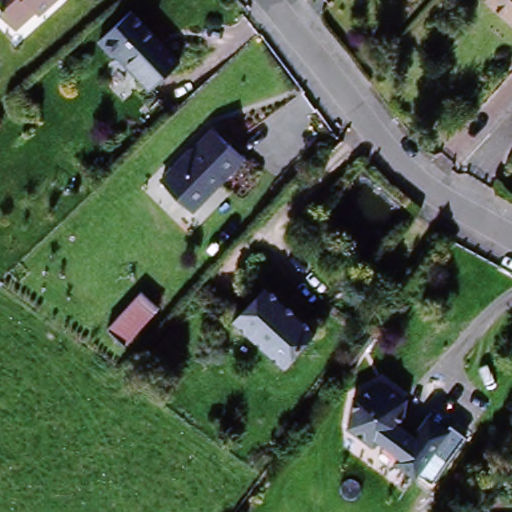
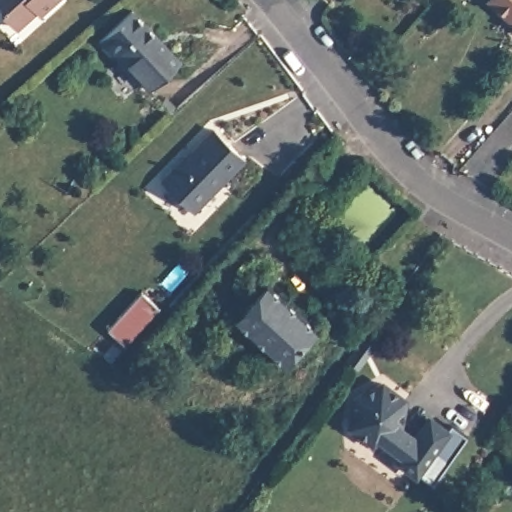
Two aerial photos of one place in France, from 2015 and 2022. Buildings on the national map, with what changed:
unchanged [(61,0),(48,12),(44,10),(23,29),(8,13),(12,8),(5,0),(61,0)]
unchanged [(494,0),(512,0),(512,17),(494,0)]
unchanged [(149,83),(131,60),(124,65),(110,49),(144,20),(191,71),(159,100),(147,85),(149,83)]
unchanged [(163,179),(216,130),(243,161),(191,210),(163,179)]
unchanged [(286,360),(235,315),(265,281),(316,325),(286,360)]
unchanged [(143,292),(161,310),(126,339),(111,328),(143,292)]
unchanged [(354,372),(345,365),(369,332),(377,337),(354,372)]
unchanged [(383,382),(403,396),(402,425),(413,435),(428,415),(444,426),(448,420),(464,432),(436,468),(421,457),(414,466),(397,454),(400,450),(383,437),(374,440),(352,422),(355,395),(383,382)]

